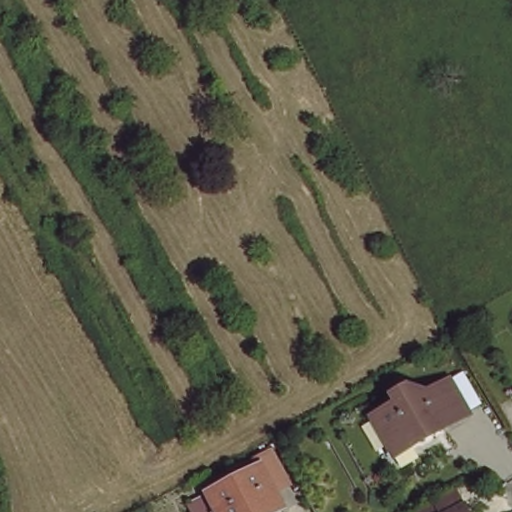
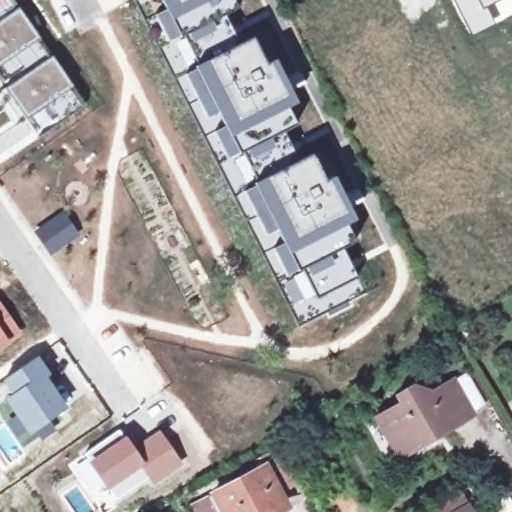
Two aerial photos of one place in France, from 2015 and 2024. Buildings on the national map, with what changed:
new [(85,105),(36,140),(0,86),(0,0),(12,0),(85,105)]
new [(240,10),(225,16),(240,45),(255,40),(267,64),(277,60),(297,105),(289,110),(297,125),(283,133),(300,161),(313,155),(327,182),(337,179),(357,221),(347,227),(355,243),(343,250),(357,280),(317,299),(303,271),(299,274),(254,184),(257,182),(243,155),(240,158),(196,67),(200,65),(185,37),(180,40),(161,0),(235,0),(240,10)]
new [(472,35),(454,0),(512,0),(512,15),(497,23),(472,35)]
new [(63,210),(80,234),(50,255),(32,230),(63,210)]
new [(23,333),(0,349),(0,301),(23,333)]
new [(37,355),(51,374),(48,376),(67,405),(48,420),(55,430),(42,440),(34,430),(27,435),(2,400),(9,394),(0,381),(37,355)]
unchanged [(407,435),(390,402),(414,386),(410,380),(428,370),(436,385),(472,363),(492,401),(462,418),(460,412),(451,416),(455,424),(432,436),(413,446),(407,435)]
new [(119,428),(133,445),(143,466),(141,468),(147,478),(115,500),(81,455),(119,428)]
new [(158,428),(184,465),(152,486),(147,478),(141,468),(143,466),(133,445),(158,428)]
unchanged [(265,512),(223,512),(212,492),(262,463),(283,501),(265,512)]
unchanged [(468,512),(441,512),(462,501),(468,512)]

